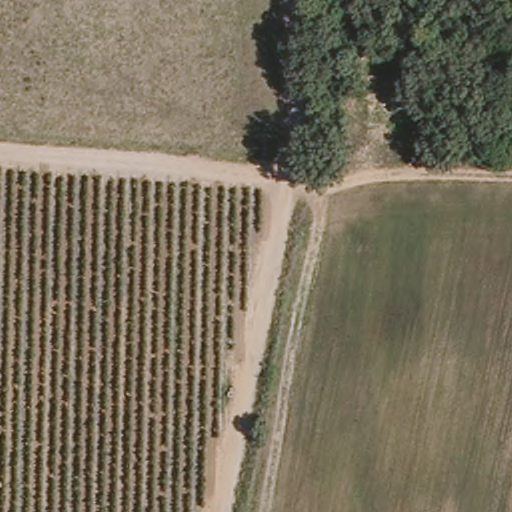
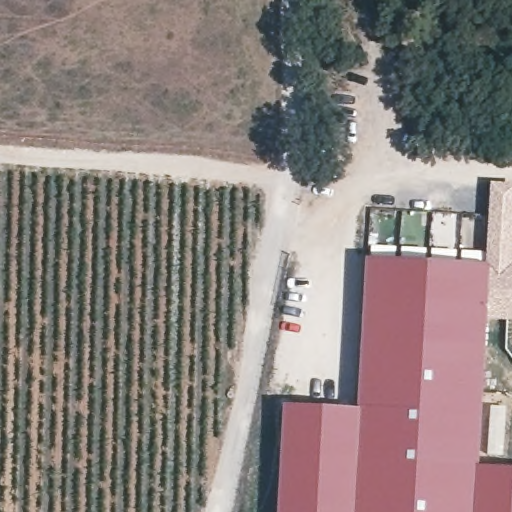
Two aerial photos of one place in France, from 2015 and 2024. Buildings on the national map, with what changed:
new [(280,512),(284,408),(358,411),(366,261),(489,267),(485,320),(479,468),(512,470),(512,512),(280,512)]
new [(485,320),(489,267),(489,264),(512,265),(512,321),(485,320)]
demolished [(511,512),(512,495),(512,512),(511,512)]

